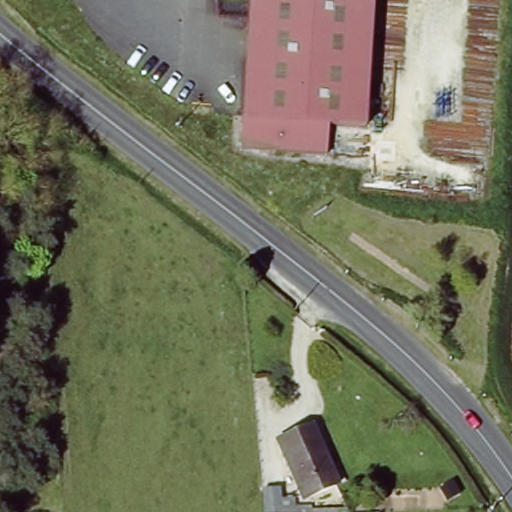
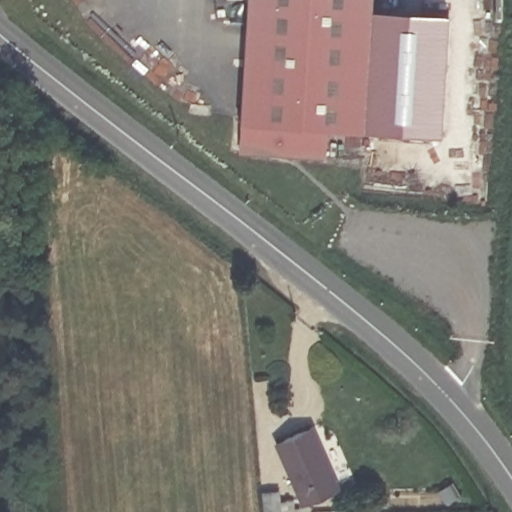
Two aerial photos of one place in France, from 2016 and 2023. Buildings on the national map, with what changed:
unchanged [(332,126),(330,155),(243,150),(252,0),(377,0),(369,129),(332,126)]
new [(369,129),(377,5),(450,11),(442,134),(369,129)]
unchanged [(319,425),(340,484),(305,495),(284,437),(319,425)]
unchanged [(280,490),(297,489),(299,512),(281,512),(280,490)]

